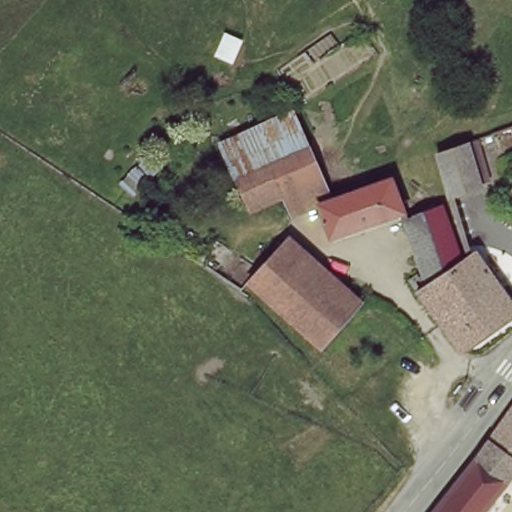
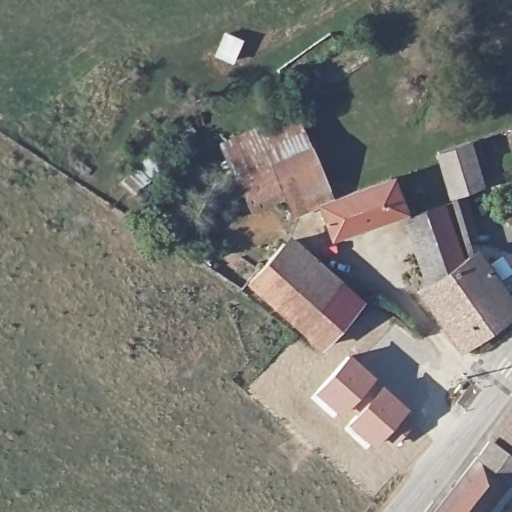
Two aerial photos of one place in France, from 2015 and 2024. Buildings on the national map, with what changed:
unchanged [(331,197),(292,214),(283,199),(246,208),(220,145),(295,111),(331,197)]
unchanged [(458,199),(444,155),(452,152),(458,150),(472,144),(487,188),(458,199)]
unchanged [(429,207),(333,240),(321,208),(417,175),(429,207)]
unchanged [(462,264),(427,276),(408,224),(444,212),(462,264)]
unchanged [(360,308),(324,346),(253,282),(288,243),(360,308)]
unchanged [(512,312),(512,316),(462,350),(442,324),(438,326),(417,297),(470,262),(478,257),(512,312)]
new [(348,353),(375,376),(350,403),(335,414),(313,393),(348,353)]
new [(381,383),(407,406),(368,445),(345,424),(381,383)]
unchanged [(461,389),(457,393),(453,389),(457,385),(461,389)]
unchanged [(435,512),(507,420),(512,412),(512,478),(486,512),(435,512)]

